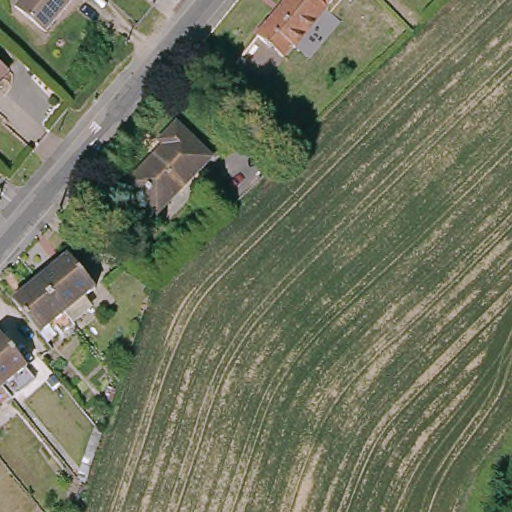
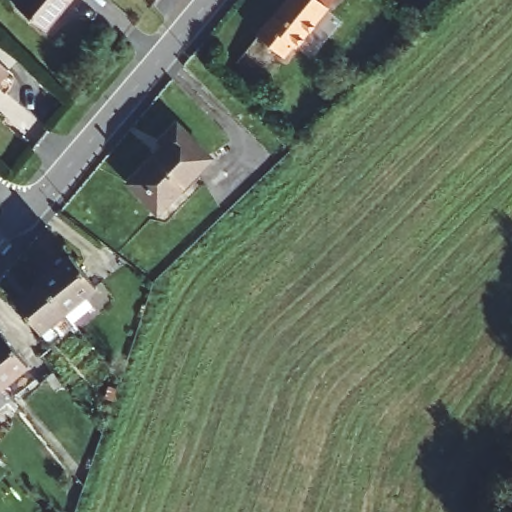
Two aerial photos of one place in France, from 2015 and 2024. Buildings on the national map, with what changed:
unchanged [(45,32),(15,6),(20,0),(72,0),(45,32)]
unchanged [(287,0),(334,0),(327,8),(327,7),(295,47),(292,45),(282,57),(257,36),(267,24),(287,0)]
unchanged [(0,81),(0,63),(9,71),(0,81)]
unchanged [(124,184),(160,146),(156,142),(172,124),(206,159),(152,214),(124,184)]
unchanged [(64,251),(90,284),(61,307),(34,274),(64,251)]
unchanged [(61,307),(68,317),(57,326),(49,316),(35,328),(9,295),(34,274),(61,307)]
unchanged [(10,372),(17,381),(6,391),(0,384),(0,332),(24,361),(10,372)]

